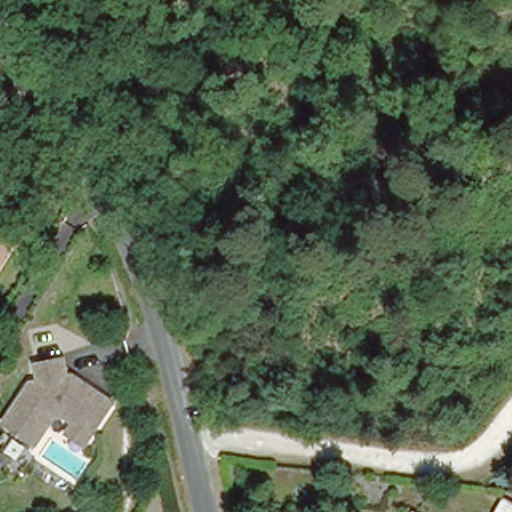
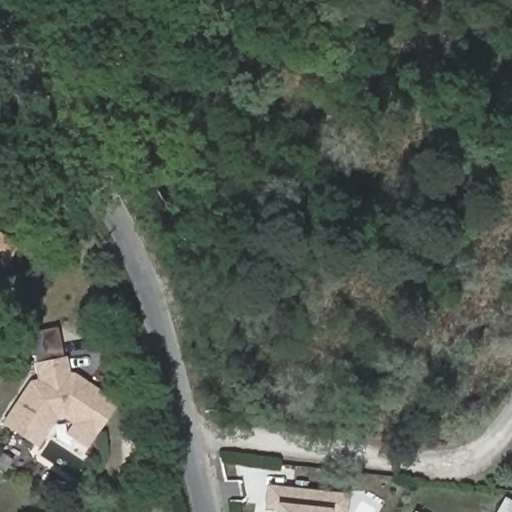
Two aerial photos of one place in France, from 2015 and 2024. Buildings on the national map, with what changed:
unchanged [(16,247),(0,275),(0,237),(16,247)]
unchanged [(64,357),(67,374),(73,373),(115,405),(84,450),(65,437),(71,426),(59,417),(51,422),(35,449),(0,424),(0,423),(28,381),(34,379),(31,362),(64,357)]
new [(264,510),(266,486),(344,492),(342,512),(272,512),(272,510),(264,510)]
unchanged [(504,497),(512,501),(512,512),(496,512),(504,497)]
unchanged [(424,512),(410,512),(413,506),(424,512)]

